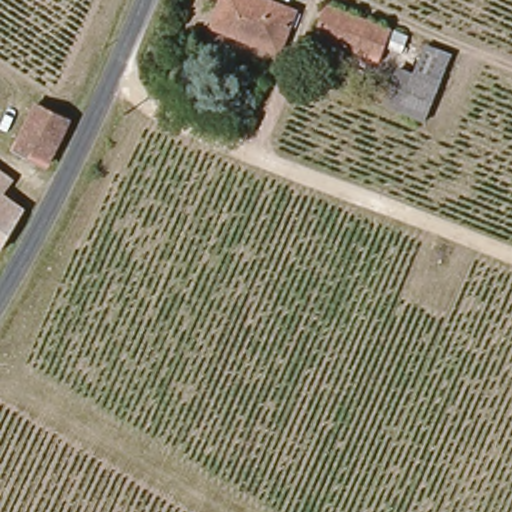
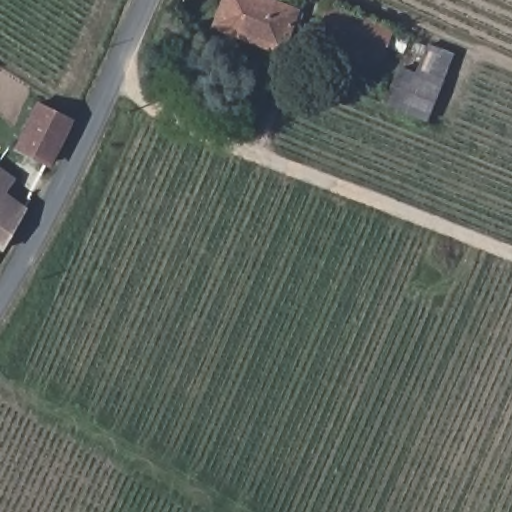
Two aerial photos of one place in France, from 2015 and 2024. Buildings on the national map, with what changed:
unchanged [(212,25),(222,0),(273,0),(294,7),(279,49),(212,25)]
unchanged [(395,51),(380,44),(375,56),(315,30),(326,3),(386,28),(402,35),(395,51)]
unchanged [(415,81),(426,52),(450,63),(423,127),(379,108),(394,72),(415,81)]
unchanged [(9,145),(31,107),(70,130),(49,167),(9,145)]
unchanged [(0,171),(5,175),(0,184),(0,171)]
unchanged [(0,195),(19,207),(0,242),(0,195)]

